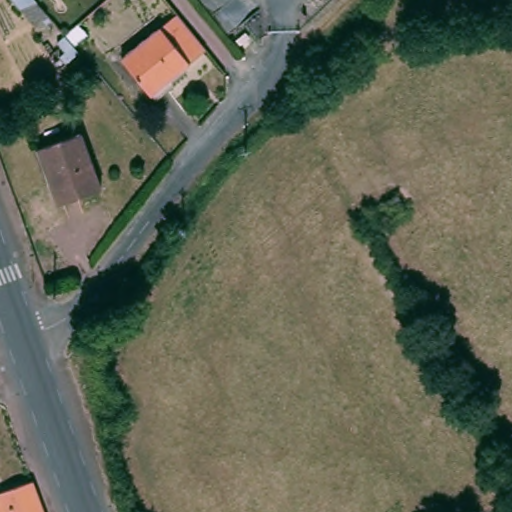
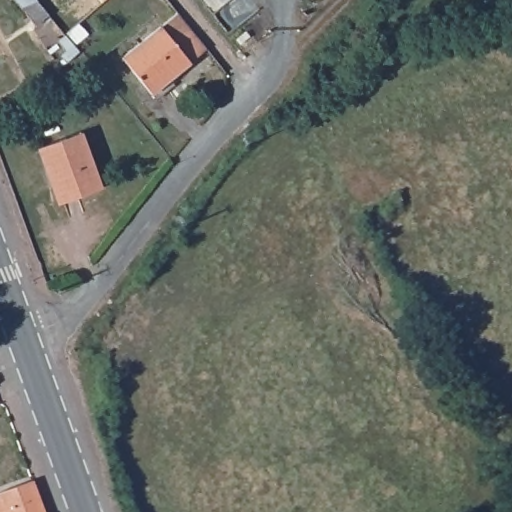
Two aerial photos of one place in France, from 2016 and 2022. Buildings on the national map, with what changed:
unchanged [(68,52),(52,33),(24,2),(22,0),(44,0),(66,26),(82,45),(68,52)]
unchanged [(142,101),(116,68),(176,17),(204,50),(142,101)]
unchanged [(101,191),(60,206),(50,175),(55,171),(47,148),(81,136),(101,191)]
unchanged [(38,485),(48,512),(0,512),(0,502),(38,485)]

